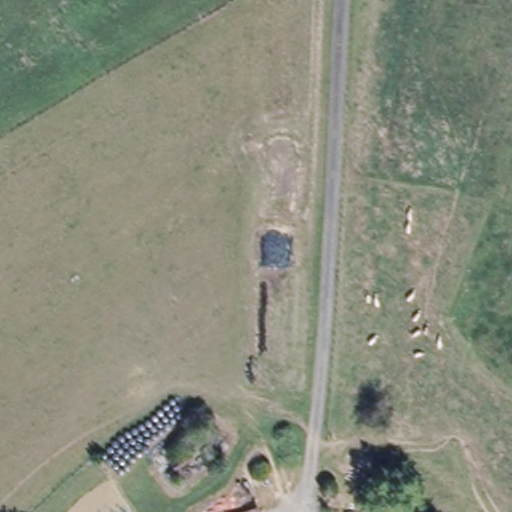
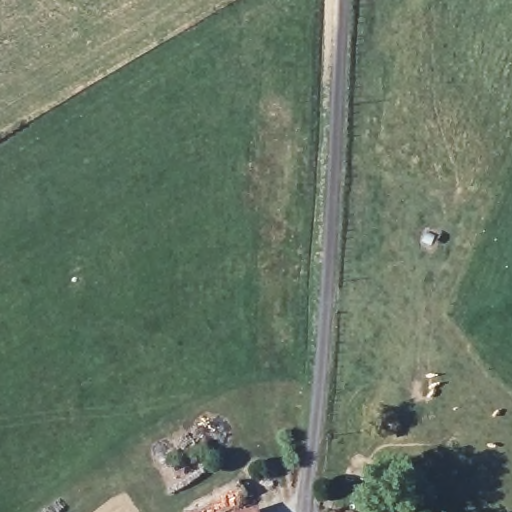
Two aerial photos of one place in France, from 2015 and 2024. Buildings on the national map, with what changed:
unchanged [(254,497),(260,512),(222,512),(254,497)]

